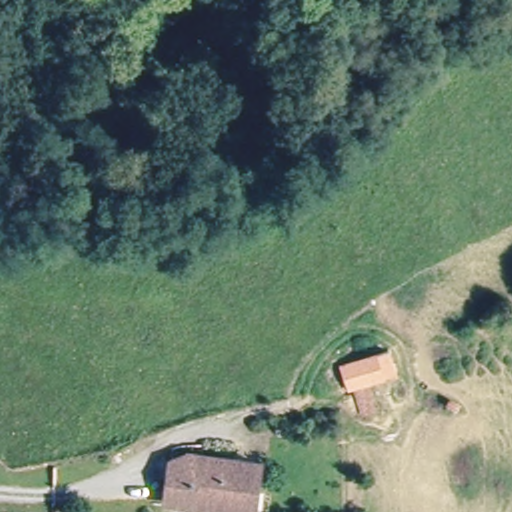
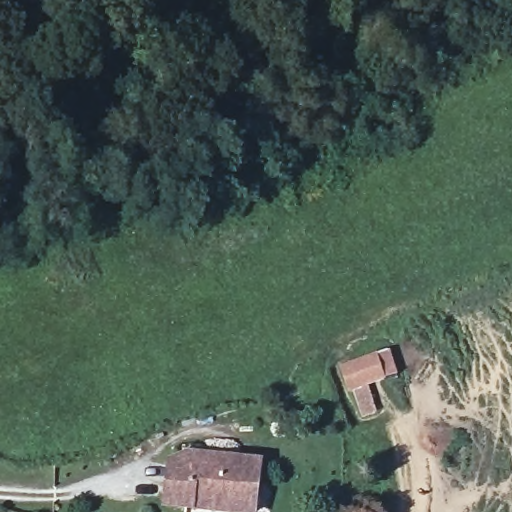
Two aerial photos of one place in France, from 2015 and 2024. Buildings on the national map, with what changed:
unchanged [(397,376),(347,393),(338,366),(388,350),(397,376)]
unchanged [(258,459),(256,510),(172,507),(174,474),(189,456),(258,459)]

